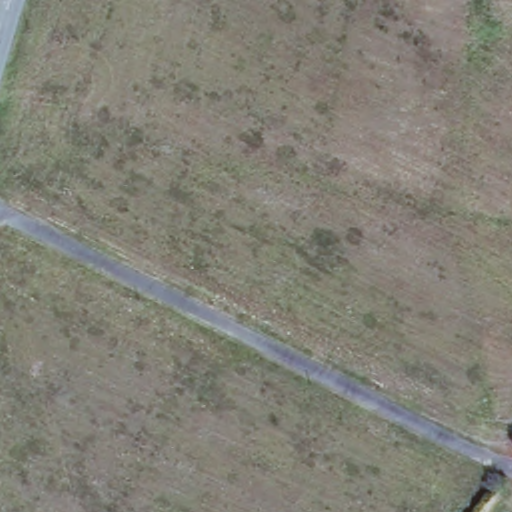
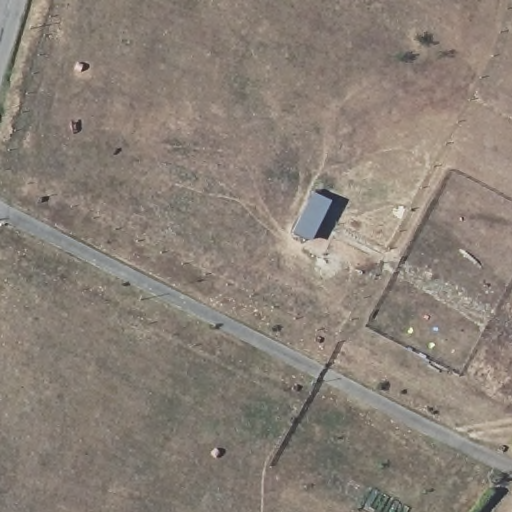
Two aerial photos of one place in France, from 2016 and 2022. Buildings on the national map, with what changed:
new [(315,193),(329,200),(310,239),(296,233),(315,193)]

